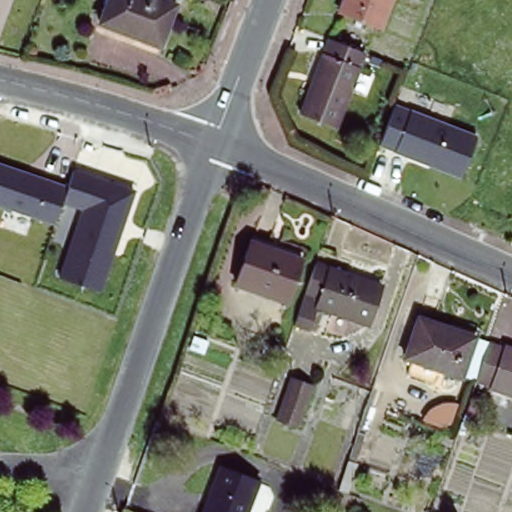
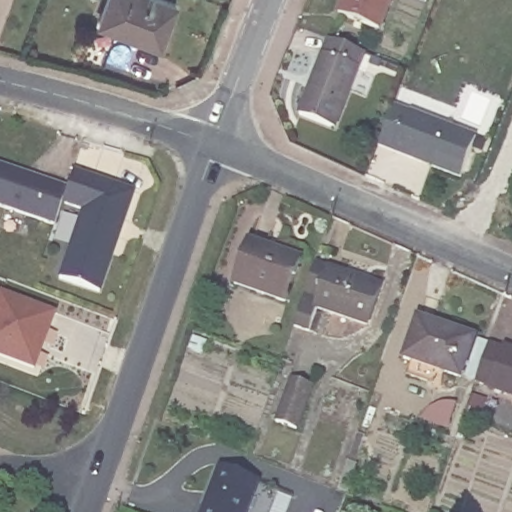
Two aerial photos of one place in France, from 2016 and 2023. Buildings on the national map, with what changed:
unchanged [(101,21),(110,0),(165,0),(179,5),(162,46),(101,21)]
unchanged [(342,12),(347,0),(390,0),(379,27),(342,12)]
unchanged [(369,51),(339,127),(305,113),(334,38),(369,51)]
unchanged [(477,134),(459,177),(393,150),(410,107),(477,134)]
unchanged [(80,210),(60,203),(55,222),(0,207),(0,162),(66,181),(70,166),(135,189),(99,294),(57,279),(80,210)]
unchanged [(301,256),(287,299),(268,293),(237,282),(252,239),(282,250),(301,256)]
unchanged [(325,255),(390,278),(379,316),(326,298),(319,320),(305,315),(325,255)]
new [(0,357),(0,291),(57,311),(35,370),(0,357)]
unchanged [(480,338),(466,378),(412,360),(425,320),(480,338)]
new [(194,336),(208,341),(204,355),(189,349),(194,336)]
unchanged [(495,341),(512,347),(512,392),(482,382),(495,341)]
unchanged [(287,377),(307,384),(292,428),(272,421),(287,377)]
new [(349,462),(355,464),(346,492),(340,489),(349,462)]
unchanged [(259,477),(246,512),(204,512),(222,463),(259,477)]

